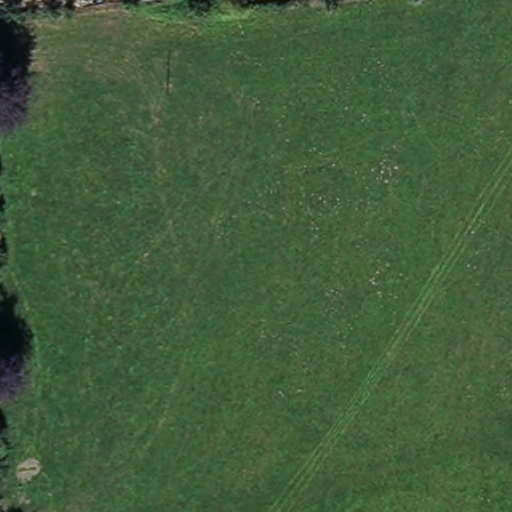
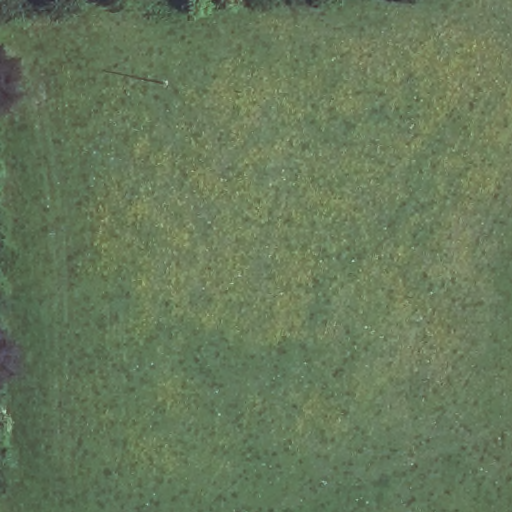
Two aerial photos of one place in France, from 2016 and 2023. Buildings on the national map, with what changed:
unchanged [(132,0),(148,0),(132,2),(132,0)]

